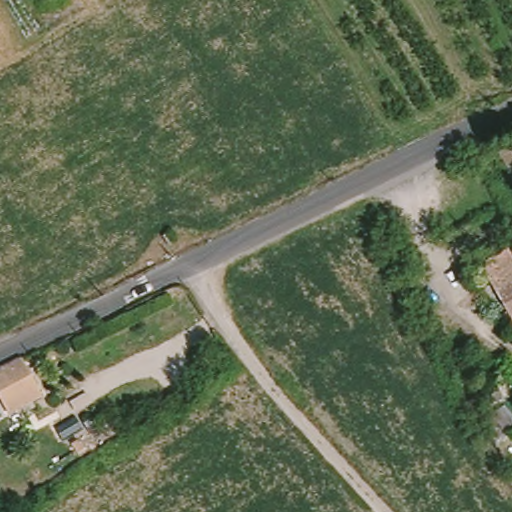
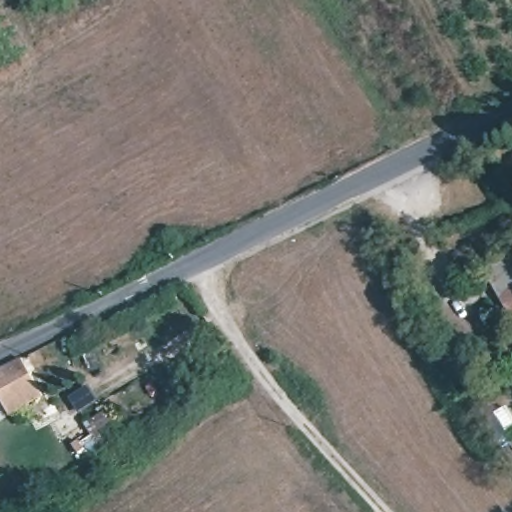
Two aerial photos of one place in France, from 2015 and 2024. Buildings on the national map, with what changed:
unchanged [(484,268),(510,253),(512,256),(512,318),(484,268)]
unchanged [(22,415),(10,393),(0,398),(0,372),(20,363),(43,401),(44,404),(37,408),(22,415)]

